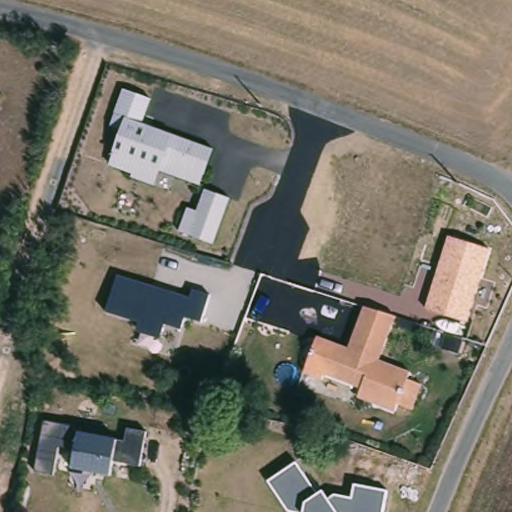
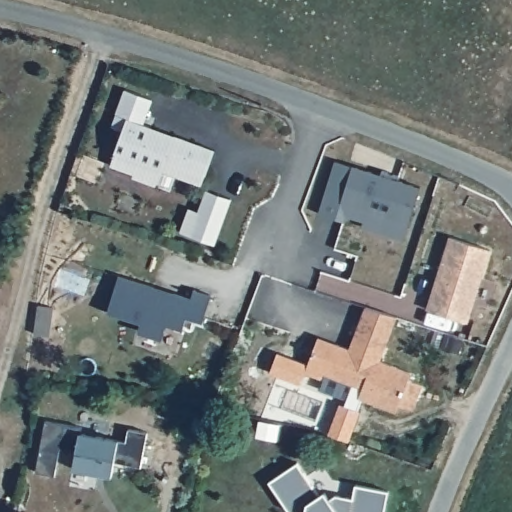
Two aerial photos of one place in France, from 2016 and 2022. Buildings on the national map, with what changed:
unchanged [(143,124),(215,150),(201,186),(161,173),(156,186),(132,178),(133,172),(112,165),(124,130),(109,126),(123,87),(152,97),(143,124)]
new [(347,216),(345,222),(320,214),(336,161),(382,175),(383,171),(400,177),(399,181),(421,188),(410,224),(405,240),(364,227),(365,222),(347,216)]
unchanged [(215,244),(178,231),(187,205),(198,210),(206,187),(232,196),(215,244)]
unchanged [(448,236),(489,249),(467,321),(425,310),(448,236)]
unchanged [(201,322),(185,318),(181,328),(166,323),(161,337),(139,331),(142,321),(108,310),(119,276),(190,296),(191,290),(210,295),(201,322)]
unchanged [(398,313),(381,359),(413,369),(409,378),(423,384),(415,410),(399,405),(397,410),(360,399),(363,389),(304,371),(318,336),(350,347),(363,305),(398,313)]
unchanged [(79,451),(59,447),(55,472),(35,469),(43,420),(83,427),(82,431),(79,451)]
unchanged [(121,427),(147,432),(142,467),(114,464),(111,474),(76,468),(82,431),(120,437),(121,427)]
unchanged [(326,491),(331,499),(337,494),(353,498),(355,483),(387,491),(384,512),(289,512),(269,481),(296,462),(319,495),(326,491)]

